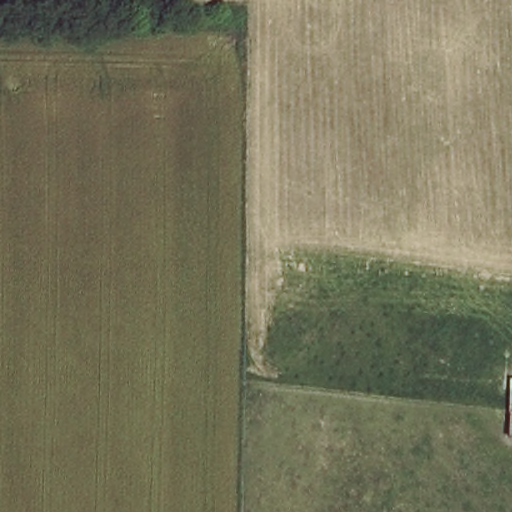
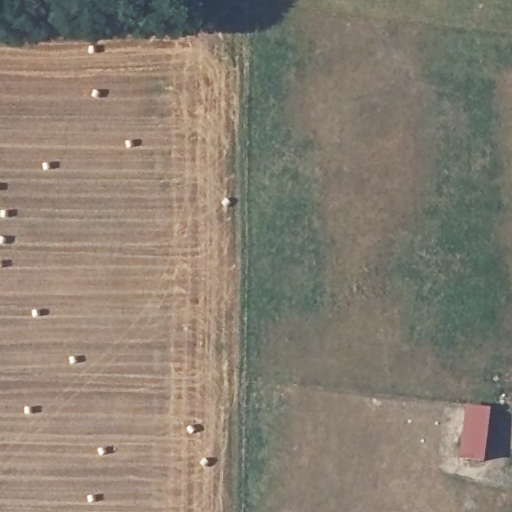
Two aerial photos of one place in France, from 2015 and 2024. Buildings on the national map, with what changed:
new [(486,463),(461,460),(467,405),(492,408),(486,463)]

